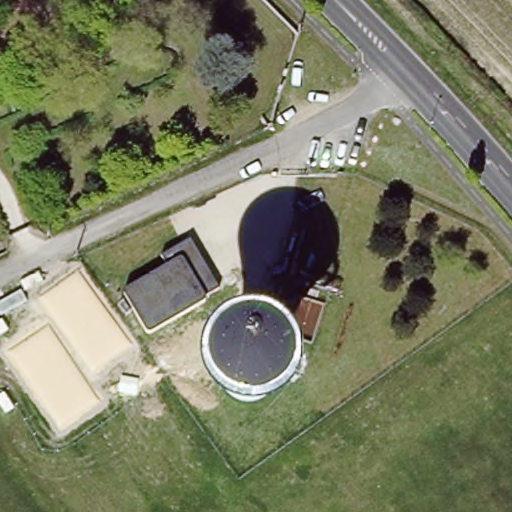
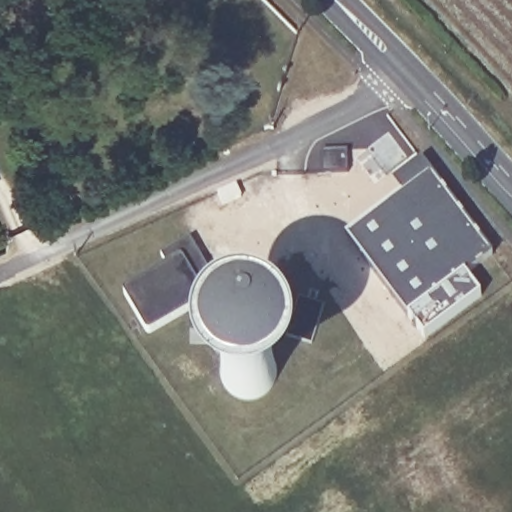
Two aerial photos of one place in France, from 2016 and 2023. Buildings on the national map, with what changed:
new [(432,175),(492,254),(454,282),(450,277),(405,309),(351,234),(432,175)]
unchanged [(124,290),(128,285),(168,260),(160,252),(191,234),(221,284),(206,294),(206,298),(153,330),(148,330),(124,290)]

